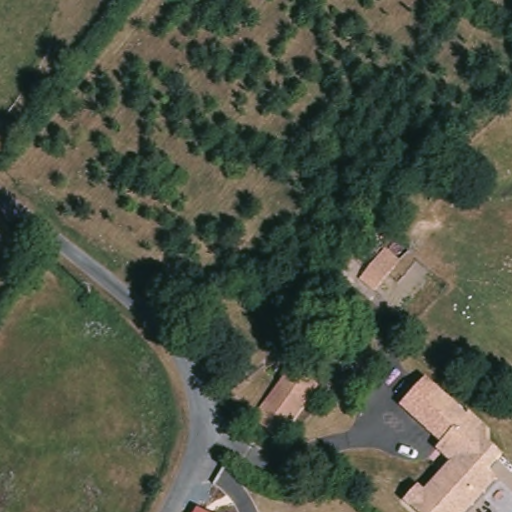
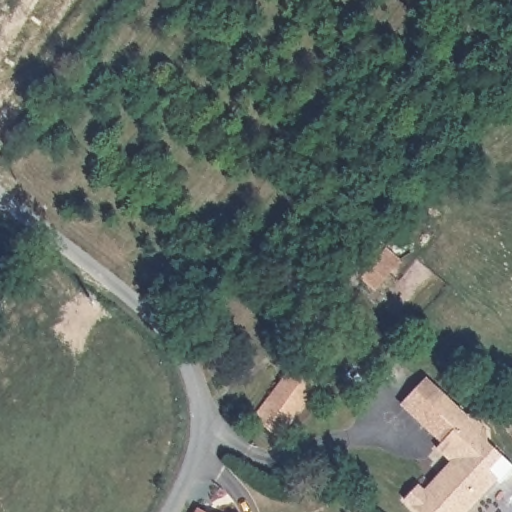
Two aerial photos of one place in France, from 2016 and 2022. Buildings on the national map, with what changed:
unchanged [(273,445),(250,427),(277,391),(289,376),(314,394),(315,395),(303,410),(275,446),(273,445)]
unchanged [(400,406),(426,376),(455,403),(431,428),(400,406)]
unchanged [(427,489),(453,463),(439,448),(446,441),(431,428),(455,403),(470,415),(474,411),(492,433),(491,445),(504,457),(494,471),(500,479),(469,512),(418,512),(406,500),(422,486),(427,489)]
unchanged [(201,512),(196,512),(197,510),(201,512)]

